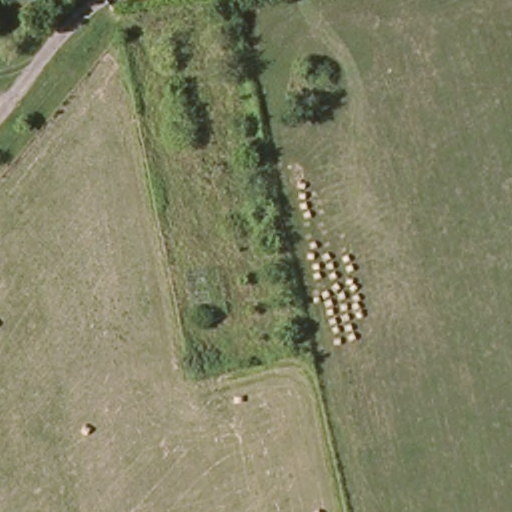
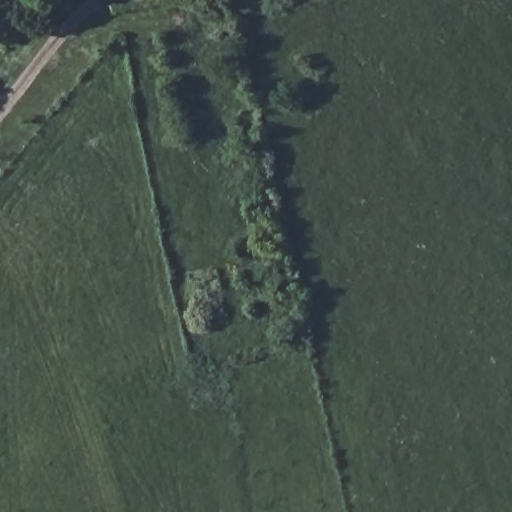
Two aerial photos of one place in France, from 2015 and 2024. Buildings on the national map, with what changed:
[]

